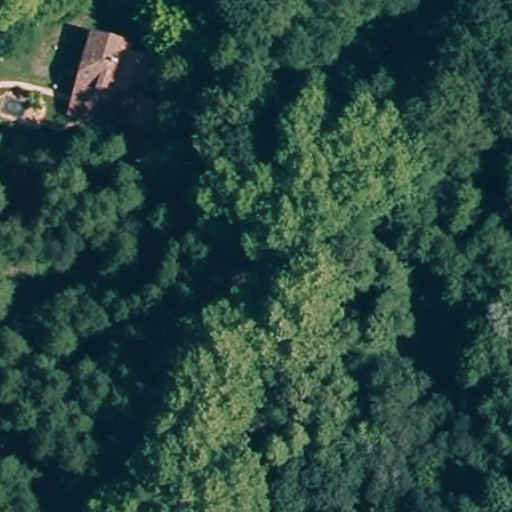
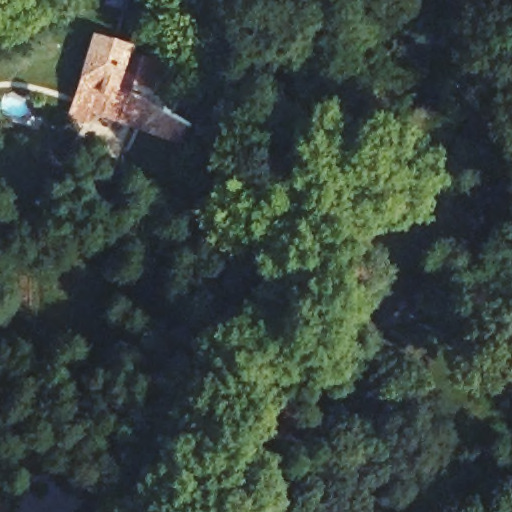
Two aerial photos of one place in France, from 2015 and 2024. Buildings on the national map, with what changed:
unchanged [(62,104),(72,80),(75,73),(80,63),(92,30),(129,43),(125,51),(135,54),(127,74),(121,71),(116,84),(165,107),(156,130),(81,100),(77,110),(62,104)]

